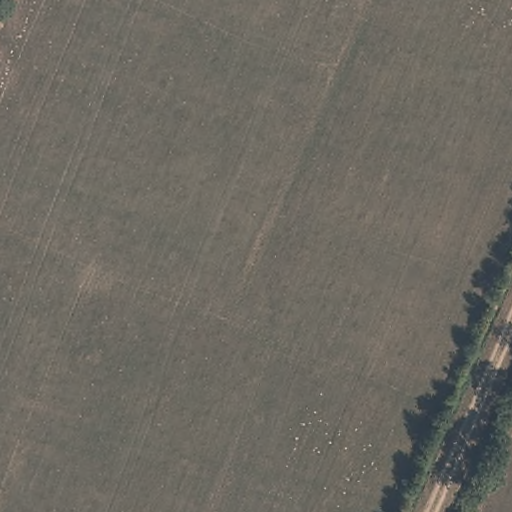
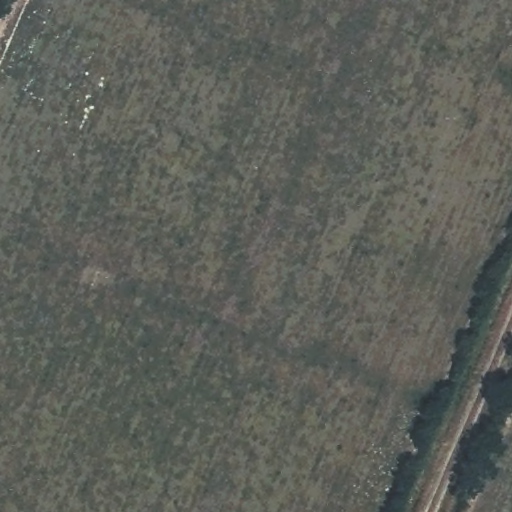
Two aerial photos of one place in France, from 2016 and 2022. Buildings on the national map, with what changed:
[]

